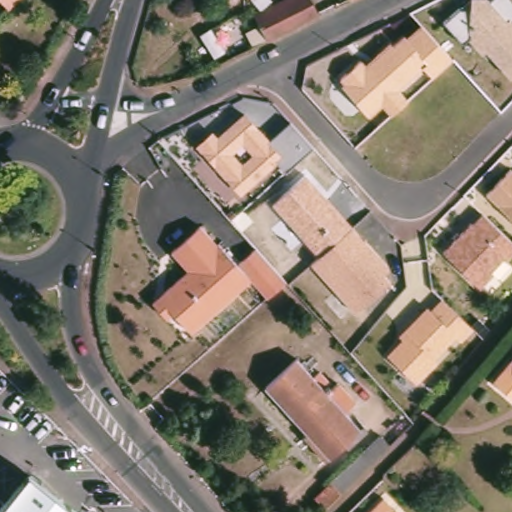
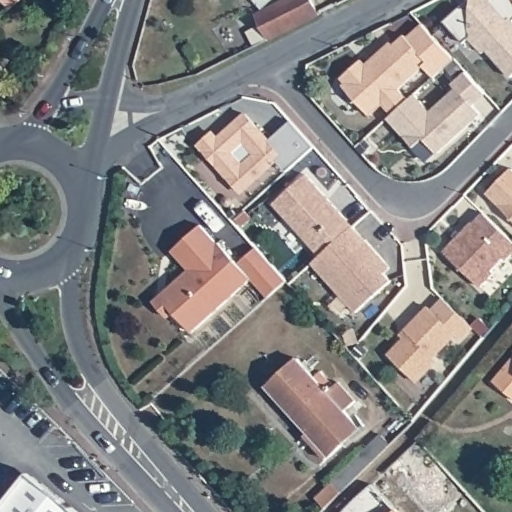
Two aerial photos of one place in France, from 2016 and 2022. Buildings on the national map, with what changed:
unchanged [(15,7),(9,0),(23,0),(19,4),(15,7)]
unchanged [(299,23),(270,38),(256,13),(284,0),(313,0),(319,13),(299,23)]
unchanged [(489,1),(490,0),(512,0),(512,19),(510,20),(512,22),(512,76),(510,78),(486,50),(481,54),(467,37),(462,42),(443,21),(466,0),(488,0),(489,1)]
unchanged [(342,86),(345,85),(340,79),(362,60),(365,63),(390,42),(392,45),(405,35),(407,38),(421,26),(451,60),(431,77),(421,67),(398,90),(408,101),(391,116),(381,106),(368,116),(342,86)]
new [(415,95),(429,110),(455,87),(451,85),(464,72),(485,95),(473,105),(481,113),(436,154),(422,140),(412,147),(386,119),(391,116),(408,101),(415,95)]
unchanged [(213,131),(216,135),(244,114),(268,140),(290,122),(311,149),(285,170),(275,160),(237,192),(196,144),(213,131)]
unchanged [(512,172),(512,219),(485,192),(509,169),(512,172)]
unchanged [(318,256),(272,205),(307,174),(350,227),(318,256)]
unchanged [(512,244),(512,252),(477,285),(442,251),(481,214),(512,244)]
unchanged [(154,303),(165,292),(190,270),(172,251),(200,226),(218,245),(220,244),(238,264),(256,247),(287,281),(268,298),(251,279),(192,333),(174,313),(169,318),(154,303)]
unchanged [(350,227),(388,268),(383,274),(390,282),(355,311),(311,262),(350,227)]
unchanged [(402,340),(398,335),(428,305),(432,308),(442,298),(473,330),(461,342),(454,338),(431,358),(435,363),(415,382),(387,355),(402,340)]
unchanged [(315,377),(320,370),(331,382),(328,385),(331,389),(339,381),(356,400),(345,411),(360,428),(326,461),(310,444),(313,440),(265,387),(297,357),(315,377)]
unchanged [(512,365),(512,394),(497,381),(512,365)]
unchanged [(355,480),(345,489),(331,502),(324,510),(313,498),(381,433),(391,445),(355,480)]
unchanged [(82,512),(2,512),(34,472),(82,512)]
unchanged [(370,512),(384,499),(397,512),(370,512)]

